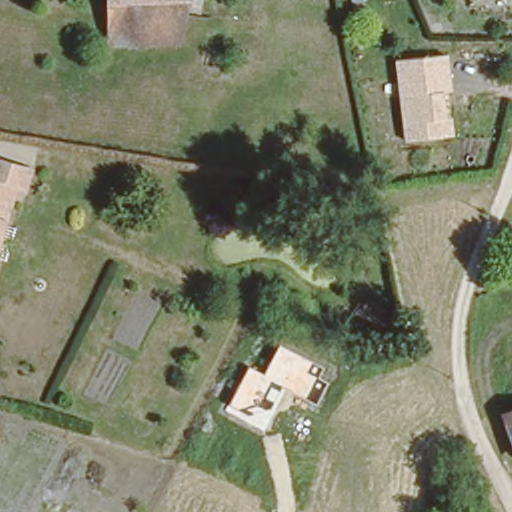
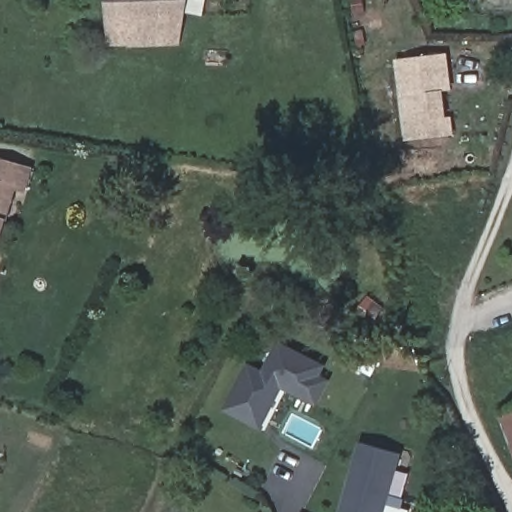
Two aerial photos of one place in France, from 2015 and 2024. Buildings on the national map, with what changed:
unchanged [(186,0),(175,31),(105,33),(106,0),(186,0)]
unchanged [(395,58),(447,52),(451,91),(444,92),(447,115),(451,115),(452,135),(405,140),(395,58)]
unchanged [(23,200),(13,198),(0,238),(0,170),(29,179),(23,200)]
unchanged [(367,292),(391,314),(379,328),(354,306),(367,292)]
unchanged [(317,377),(327,381),(315,405),(282,389),(271,410),(248,416),(227,405),(247,366),(263,373),(278,344),(322,366),(317,377)]
new [(394,347),(419,351),(416,371),(377,365),(394,347)]
unchanged [(500,407),(512,404),(512,441),(500,407)]
new [(385,512),(338,512),(358,442),(401,454),(385,512)]
demolished [(486,501),(494,512),(471,512),(486,501)]

